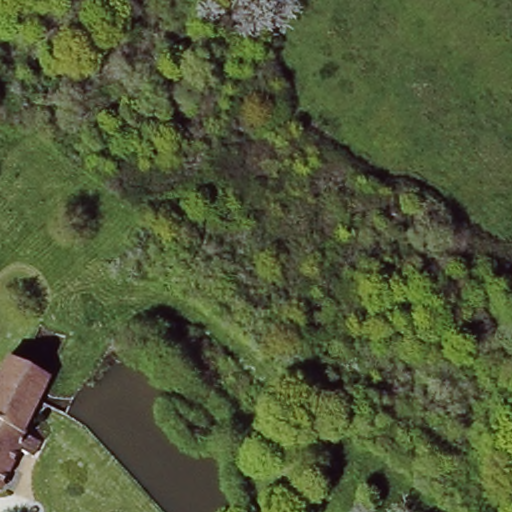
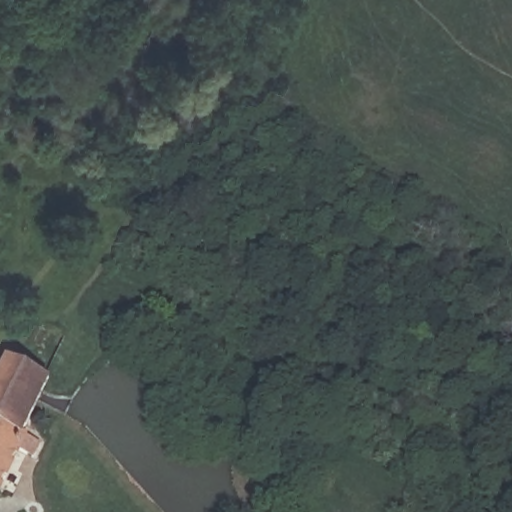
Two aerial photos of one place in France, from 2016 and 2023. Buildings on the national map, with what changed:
unchanged [(5,355),(45,376),(41,387),(19,432),(36,443),(28,458),(15,451),(0,485),(0,365),(5,355)]

